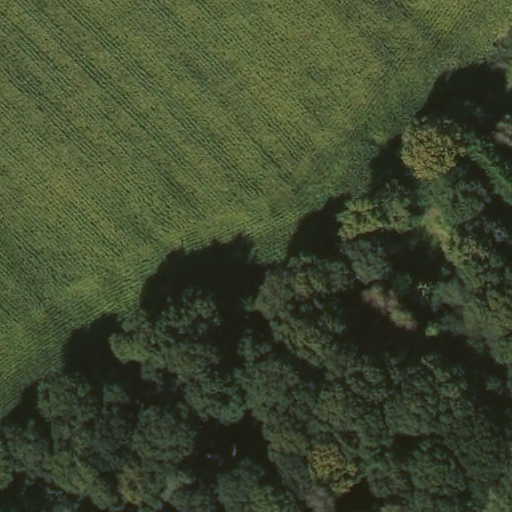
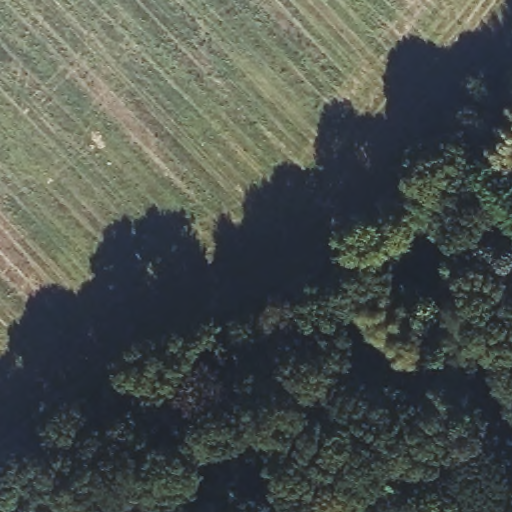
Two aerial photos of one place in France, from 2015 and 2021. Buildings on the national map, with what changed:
unchanged [(452,341),(431,361),(399,327),(421,308),(452,341)]

